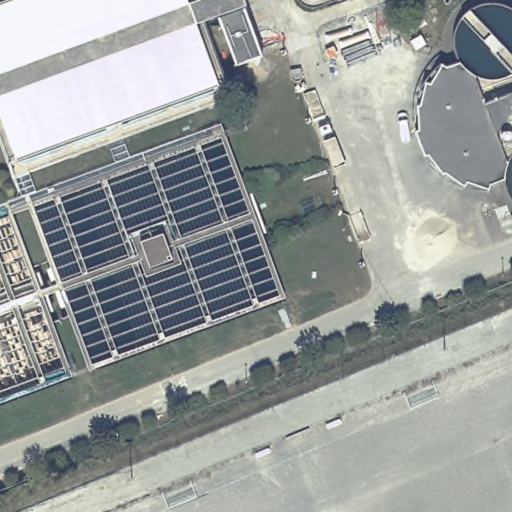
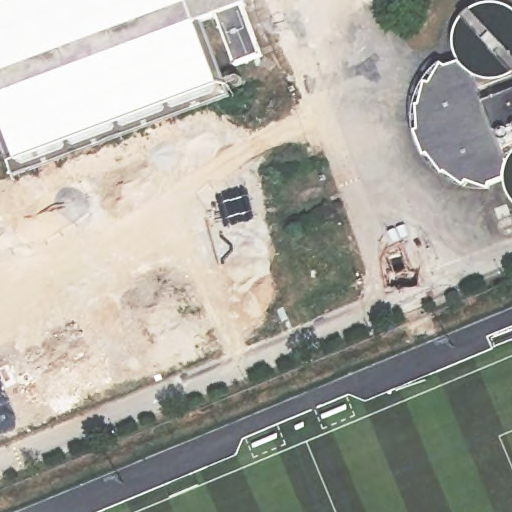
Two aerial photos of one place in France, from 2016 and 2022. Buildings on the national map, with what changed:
unchanged [(0,0),(249,0),(253,11),(250,11),(268,63),(241,73),(223,22),(201,30),(230,106),(19,184),(0,132),(0,0)]
unchanged [(318,2),(316,2),(315,2),(315,1),(313,1),(312,1),(311,0),(325,0),(319,2),(318,2)]
unchanged [(499,181),(488,185),(485,191),(462,184),(460,189),(440,174),(438,176),(422,156),(419,158),(410,133),(414,131),(411,108),(415,107),(420,83),(425,84),(438,65),(443,66),(453,63),(455,64),(482,82),(497,84),(510,79),(512,78),(512,146),(503,160),(500,170),(499,181)]
demolished [(286,305),(95,374),(33,201),(222,131),(249,203),(262,241),(286,305)]
demolished [(72,383),(0,409),(0,213),(9,210),(72,383)]

